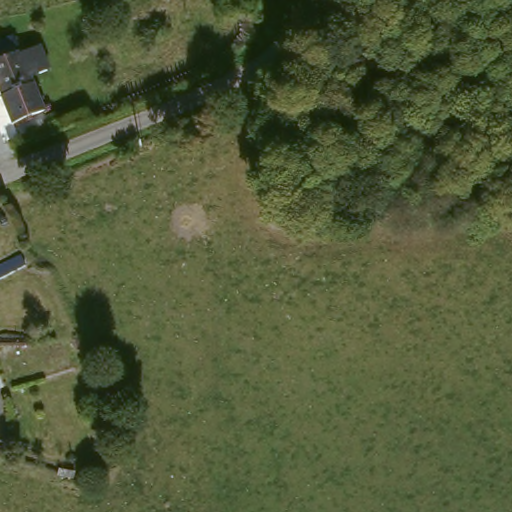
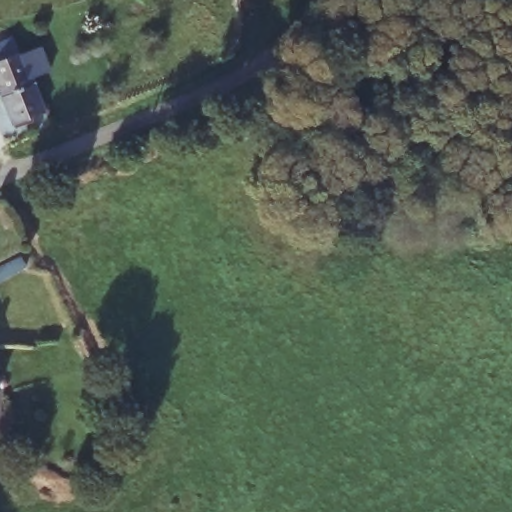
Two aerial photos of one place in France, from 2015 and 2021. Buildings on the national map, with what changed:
unchanged [(3,98),(0,92),(0,40),(11,36),(19,57),(31,87),(41,113),(13,124),(3,98)]

